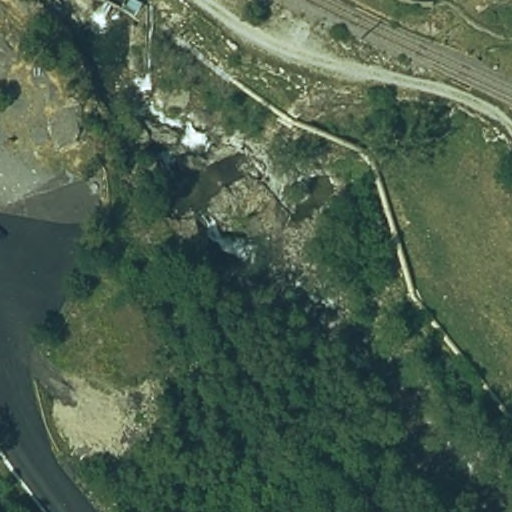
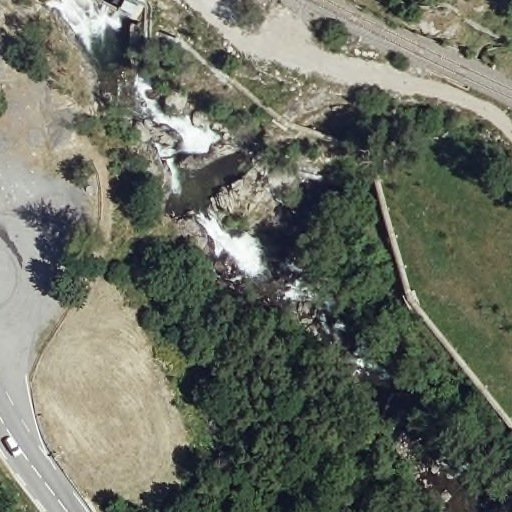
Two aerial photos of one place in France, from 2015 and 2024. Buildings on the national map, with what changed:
unchanged [(130,6),(111,0),(132,0),(130,6)]

